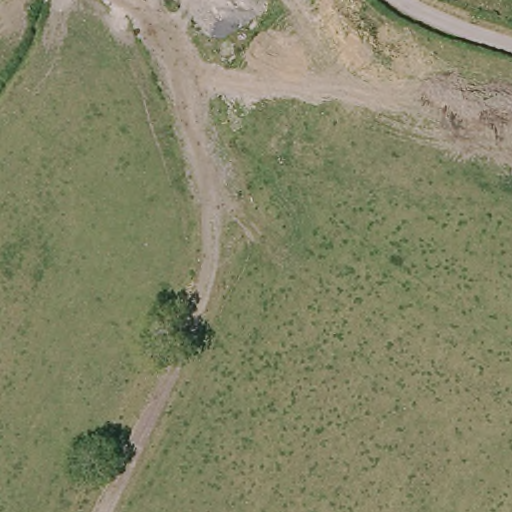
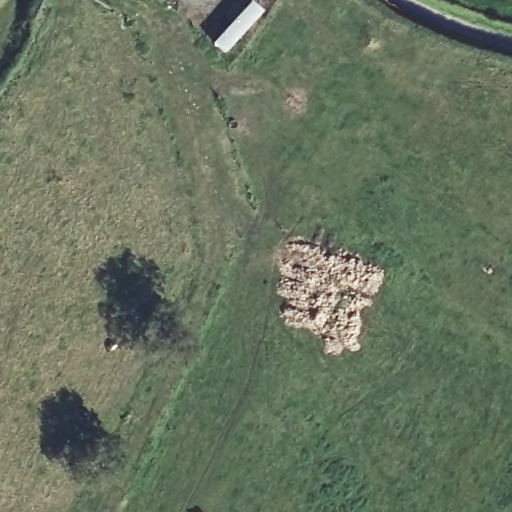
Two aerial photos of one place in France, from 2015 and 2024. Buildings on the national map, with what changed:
[]

